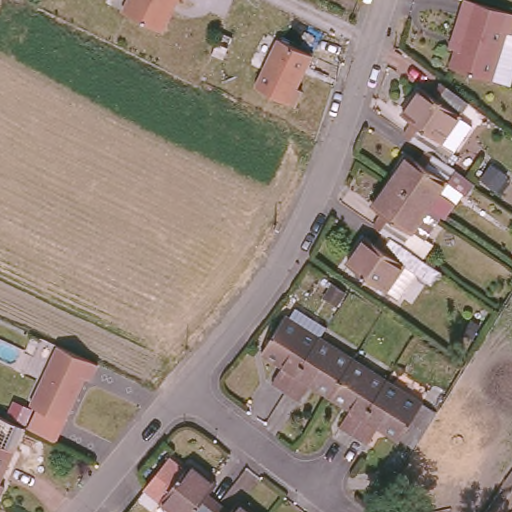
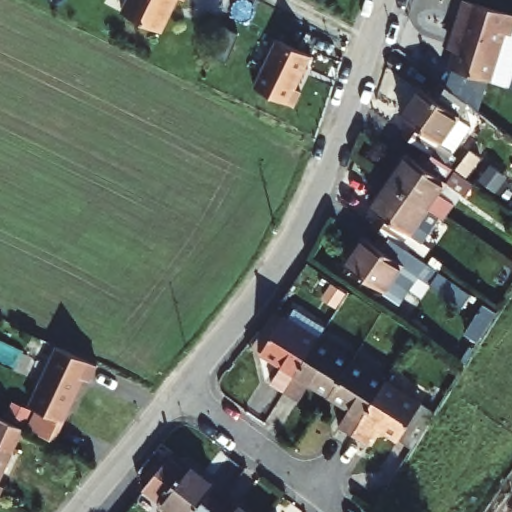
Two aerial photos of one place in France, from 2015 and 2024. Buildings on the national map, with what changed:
unchanged [(162,31),(147,25),(123,14),(130,0),(178,0),(162,31)]
unchanged [(512,11),(512,33),(507,32),(492,80),(452,66),(467,19),(461,16),(466,0),(477,0),(512,11)]
unchanged [(312,54),(312,56),(296,86),(302,90),(294,105),(255,85),(277,40),(279,39),(312,54)]
unchanged [(402,121),(420,93),(434,103),(444,89),(467,107),(432,159),(425,155),(403,139),(411,127),(402,121)]
unchanged [(443,224),(428,213),(389,186),(407,160),(417,166),(425,155),(432,159),(472,187),(465,199),(460,197),(453,208),(443,224)]
unchanged [(382,219),(372,212),(389,186),(428,213),(402,250),(384,237),(373,230),(382,219)]
unchanged [(402,250),(412,257),(385,296),(345,270),(366,241),(375,248),(384,237),(402,250)]
unchanged [(317,335),(284,386),(272,378),(282,361),(260,346),(282,312),(286,315),(295,303),(325,323),(317,335)]
unchanged [(310,377),(299,396),(284,386),(317,335),(352,356),(331,388),(330,390),(310,377)]
unchanged [(69,353),(95,365),(88,380),(83,378),(62,421),(28,405),(55,346),(69,353)]
unchanged [(338,421),(349,403),(330,390),(331,388),(352,356),(385,378),(352,430),(338,421)]
unchanged [(385,378),(433,408),(412,442),(378,421),(367,439),(352,430),(385,378)]
unchanged [(0,480),(0,446),(13,452),(0,480)]
unchanged [(190,469),(215,489),(207,498),(219,508),(215,512),(168,512),(160,505),(190,469)]
unchanged [(0,493),(0,486),(3,487),(0,493)]
unchanged [(243,512),(233,512),(237,507),(243,512)]
unchanged [(223,512),(215,512),(219,508),(223,512)]

